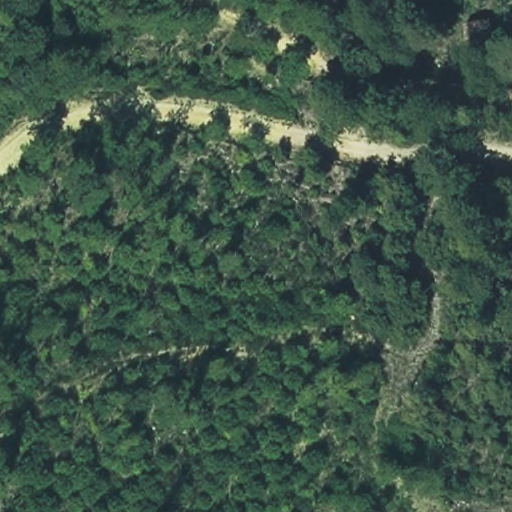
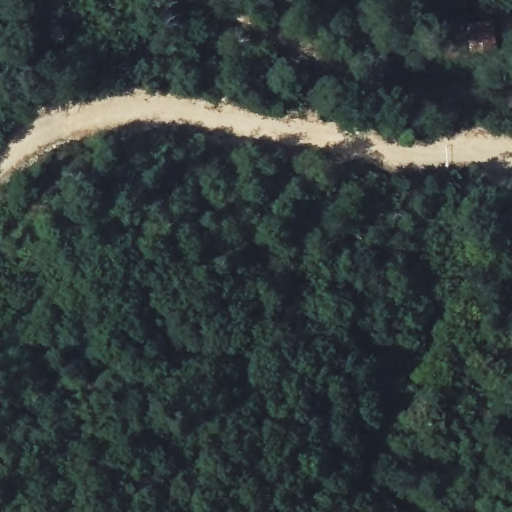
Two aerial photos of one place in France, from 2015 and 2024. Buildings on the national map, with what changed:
unchanged [(502,54),(473,56),(468,21),(500,18),(502,54)]

